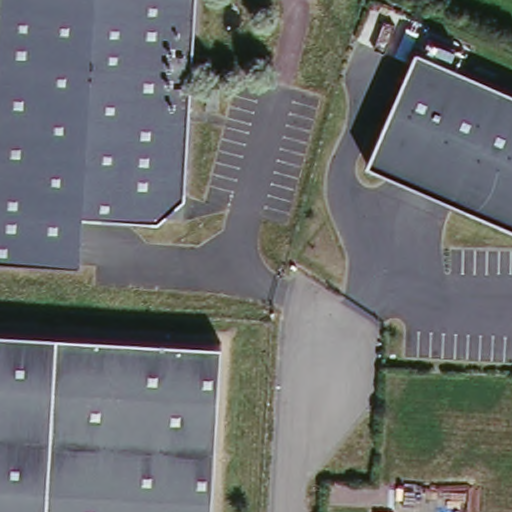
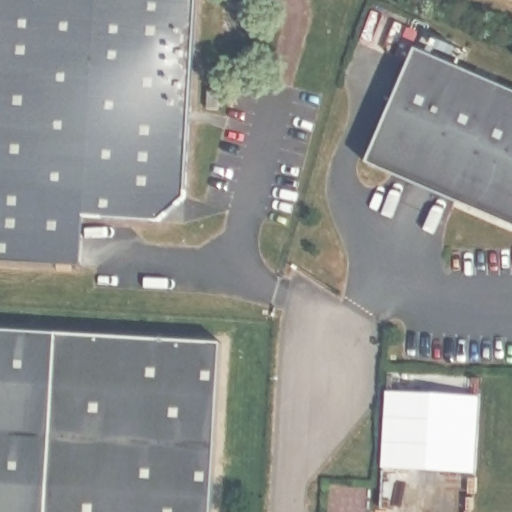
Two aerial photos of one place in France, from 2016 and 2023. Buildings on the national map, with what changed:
unchanged [(195,0),(185,198),(158,218),(86,215),(82,270),(0,263),(0,0),(195,0)]
unchanged [(408,66),(392,61),(414,16),(438,27),(433,38),(456,47),(463,50),(456,65),(512,89),(512,222),(368,160),(408,66)]
unchanged [(46,512),(0,512),(0,329),(55,333),(46,512)]
unchanged [(221,343),(213,512),(46,512),(55,333),(221,343)]
new [(480,398),(475,474),(382,469),(387,392),(480,398)]

